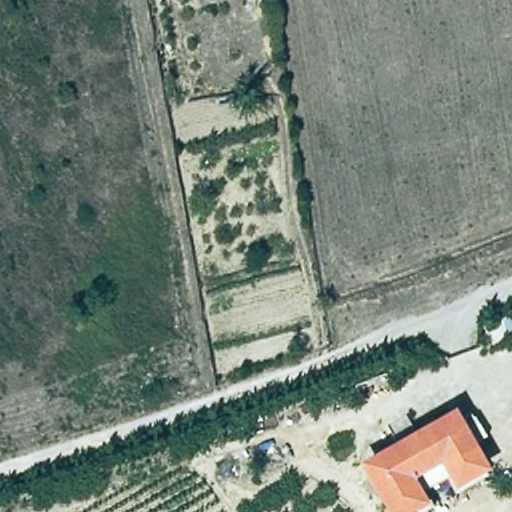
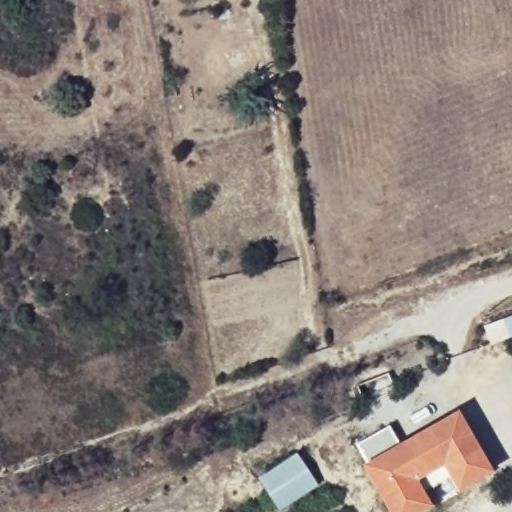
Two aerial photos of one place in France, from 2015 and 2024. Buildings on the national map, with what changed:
demolished [(252,135),(226,140),(221,120),(248,116),(252,135)]
new [(511,321),(512,321),(512,324),(511,321)]
unchanged [(493,476),(457,496),(443,468),(415,481),(431,510),(426,512),(385,512),(361,468),(453,415),(493,476)]
new [(316,485),(278,510),(258,477),(296,453),(316,485)]

